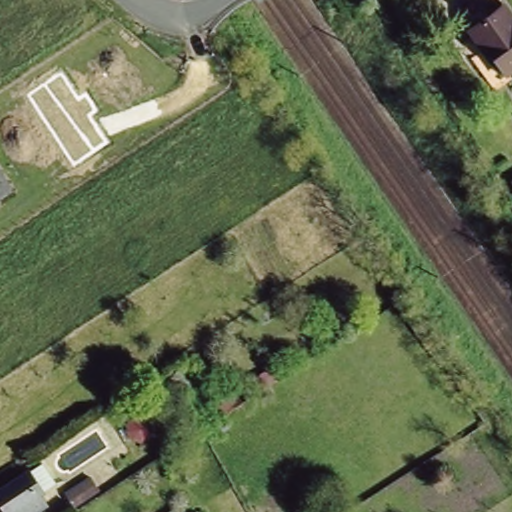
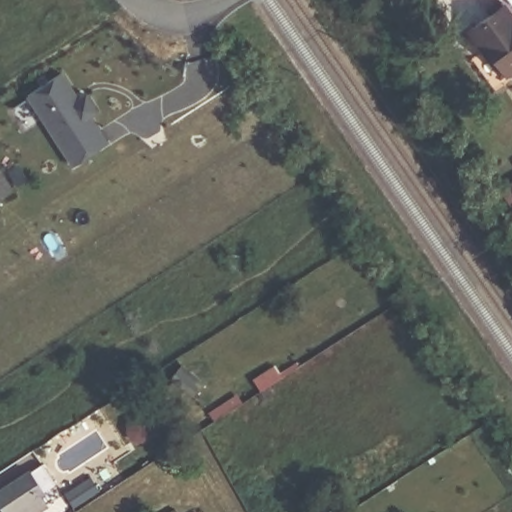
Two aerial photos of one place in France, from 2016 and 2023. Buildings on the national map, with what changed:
unchanged [(482,36),(480,38),(470,24),(505,0),(512,11),(512,66),(506,70),(482,36)]
new [(64,75),(80,101),(88,97),(99,114),(91,118),(109,145),(76,166),(31,97),(64,75)]
demolished [(6,146),(27,182),(15,189),(0,166),(0,150),(6,146)]
unchanged [(0,199),(0,166),(15,189),(0,199)]
unchanged [(37,512),(3,512),(1,509),(0,508),(0,488),(22,474),(42,463),(57,486),(37,498),(45,507),(37,512)]
unchanged [(102,489),(77,505),(69,493),(84,484),(94,477),(102,489)]

